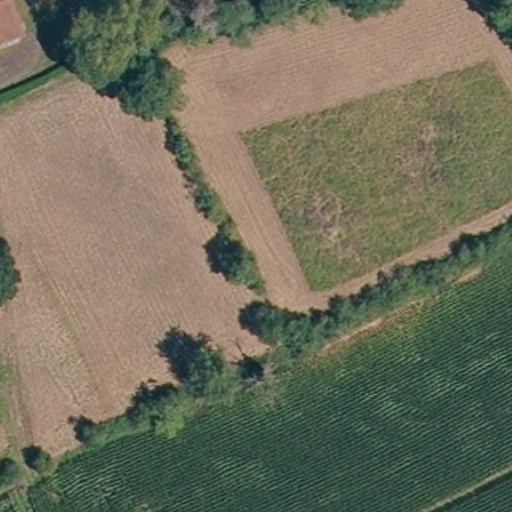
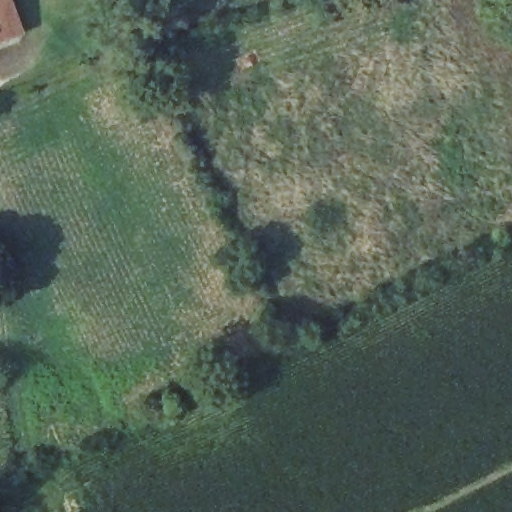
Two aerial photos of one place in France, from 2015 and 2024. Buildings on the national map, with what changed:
unchanged [(20,29),(0,36),(0,0),(8,0),(15,18),(20,29)]

